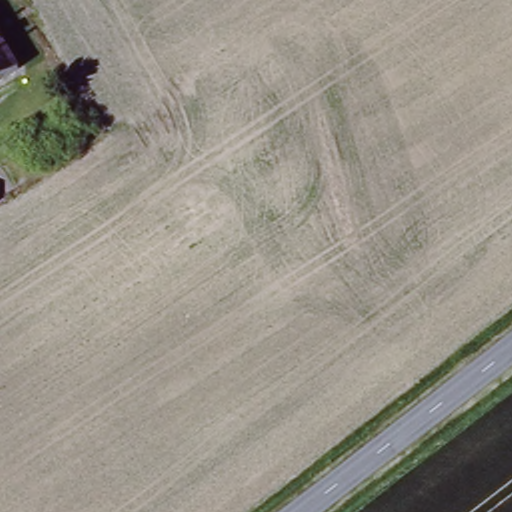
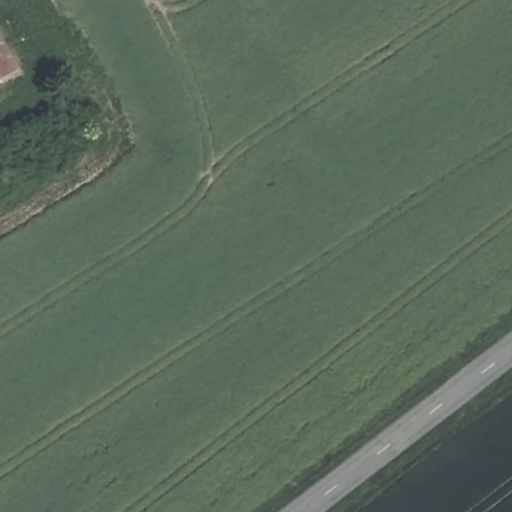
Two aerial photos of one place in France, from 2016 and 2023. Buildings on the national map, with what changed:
unchanged [(22,67),(0,84),(0,38),(22,67)]
unchanged [(8,206),(0,211),(0,194),(8,206)]

